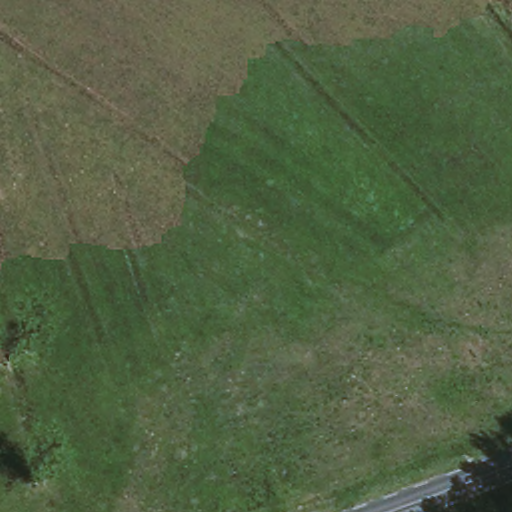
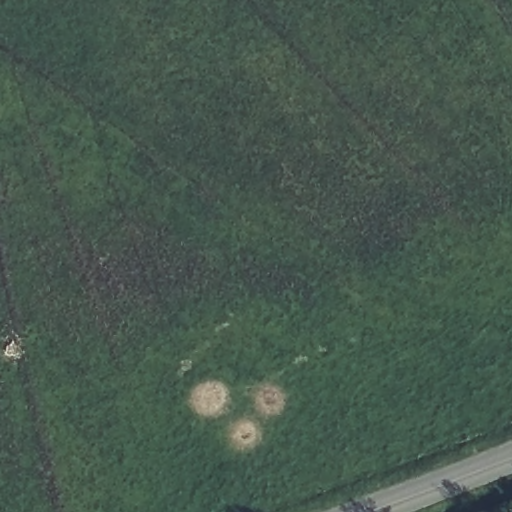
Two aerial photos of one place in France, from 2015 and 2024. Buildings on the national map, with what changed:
[]

